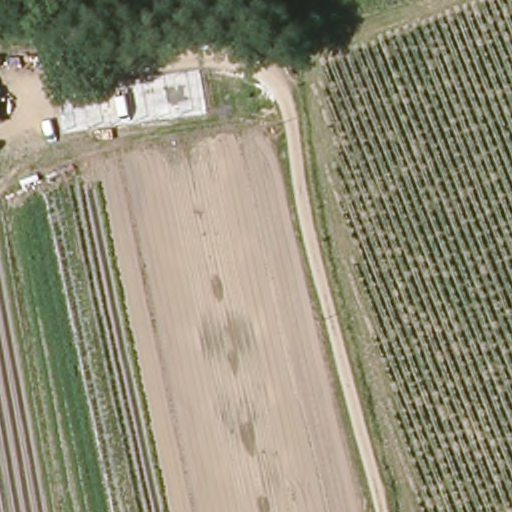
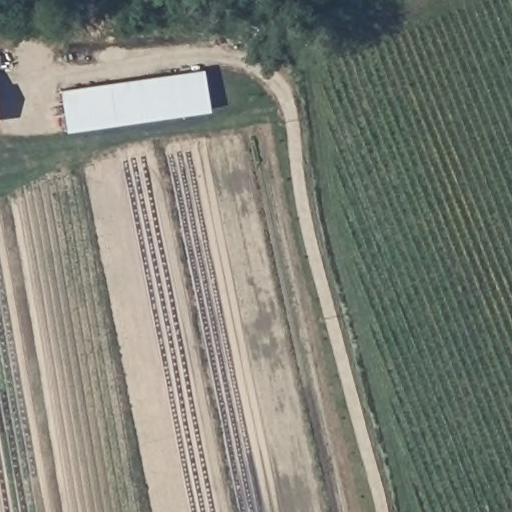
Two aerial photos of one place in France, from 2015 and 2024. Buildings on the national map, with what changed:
new [(208,111),(63,132),(58,90),(201,69),(208,111)]
unchanged [(5,121),(0,121),(0,81),(6,81),(5,121)]

